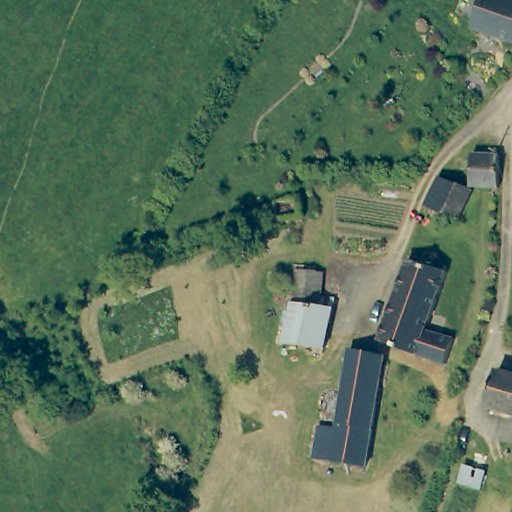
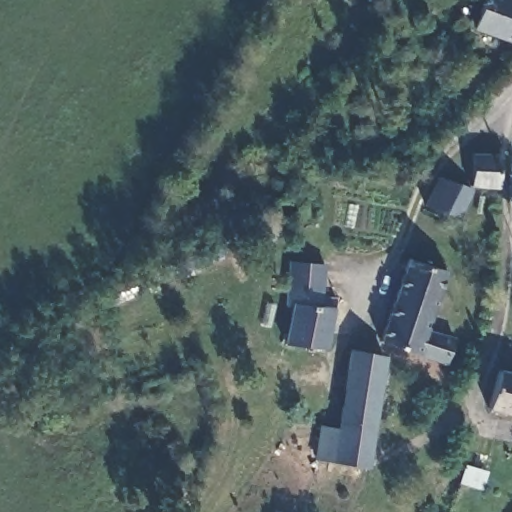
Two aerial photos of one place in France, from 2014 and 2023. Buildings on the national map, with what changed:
unchanged [(482,0),(512,0),(512,40),(472,26),(482,0)]
unchanged [(424,206),(435,178),(460,186),(466,186),(468,155),(499,155),(499,187),(468,186),(457,218),(449,215),(424,206)]
unchanged [(266,206),(276,199),(296,196),(299,211),(267,216),(266,206)]
unchanged [(401,259),(439,272),(418,330),(446,341),(439,366),(374,342),(401,259)]
unchanged [(335,299),(323,351),(283,344),(289,307),(292,284),(293,283),(295,272),(294,268),(325,273),(322,288),(320,296),(335,299)]
unchanged [(318,428),(319,424),(336,423),(348,353),(381,359),(374,415),(366,463),(348,462),(330,460),(313,459),(318,428)]
unchanged [(512,374),(512,414),(485,406),(496,370),(512,374)]

